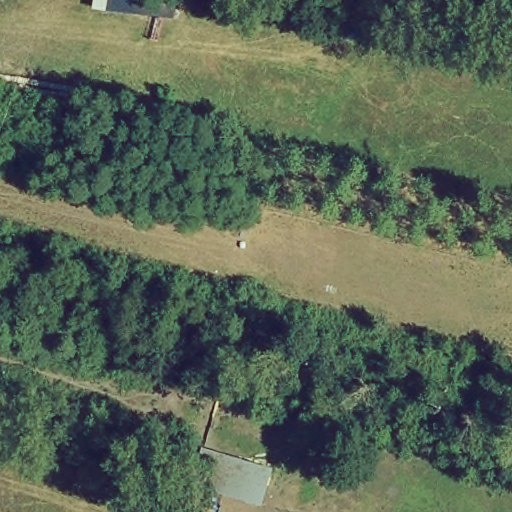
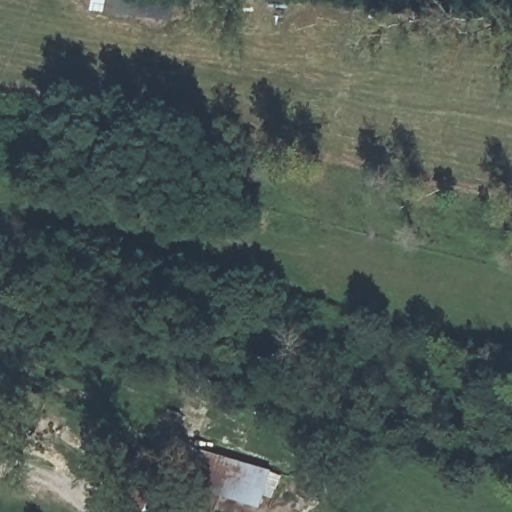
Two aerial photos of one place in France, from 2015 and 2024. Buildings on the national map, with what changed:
unchanged [(178,15),(96,5),(96,0),(178,0),(178,15)]
unchanged [(271,470),(261,507),(191,484),(202,447),(271,470)]
unchanged [(151,488),(146,510),(108,509),(114,482),(151,488)]

